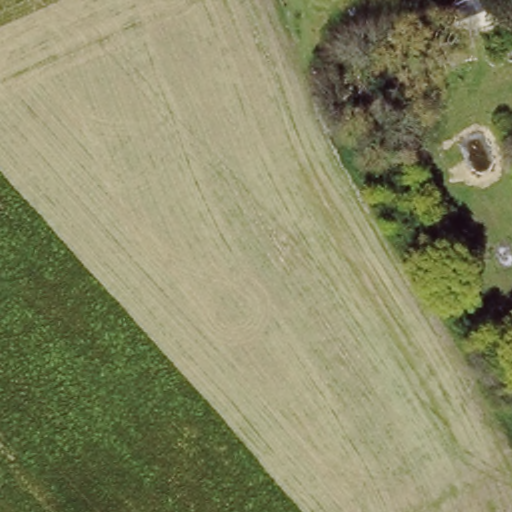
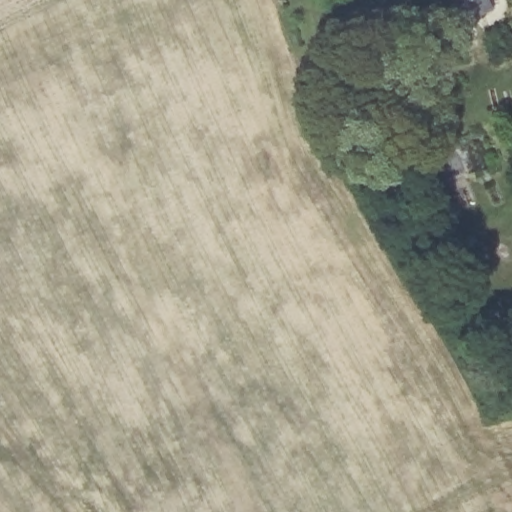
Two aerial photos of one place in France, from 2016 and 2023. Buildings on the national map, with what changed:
unchanged [(494,10),(460,25),(449,0),(490,0),(494,10)]

